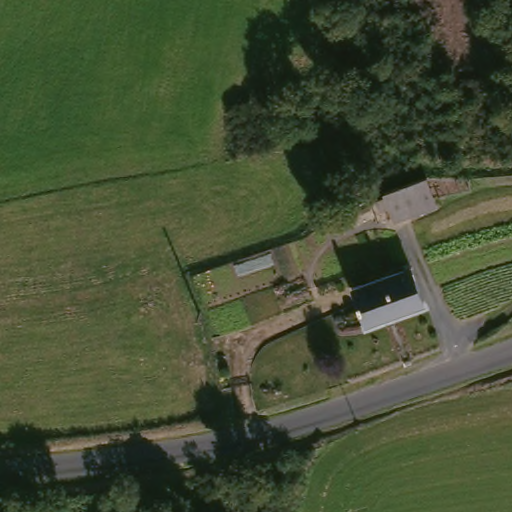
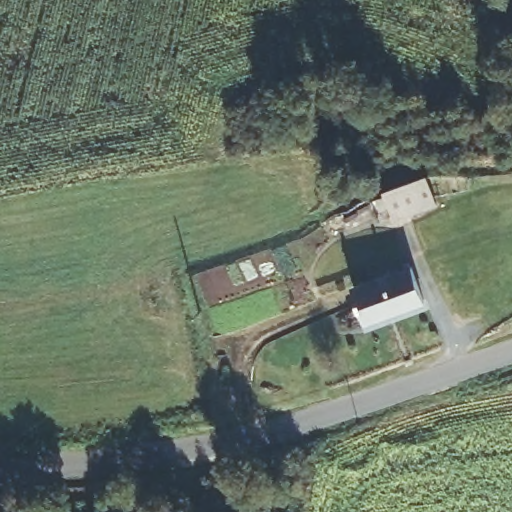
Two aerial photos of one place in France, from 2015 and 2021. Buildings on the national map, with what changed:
unchanged [(442,204),(401,219),(390,190),(432,175),(442,204)]
unchanged [(367,323),(353,288),(412,267),(425,302),(367,323)]

